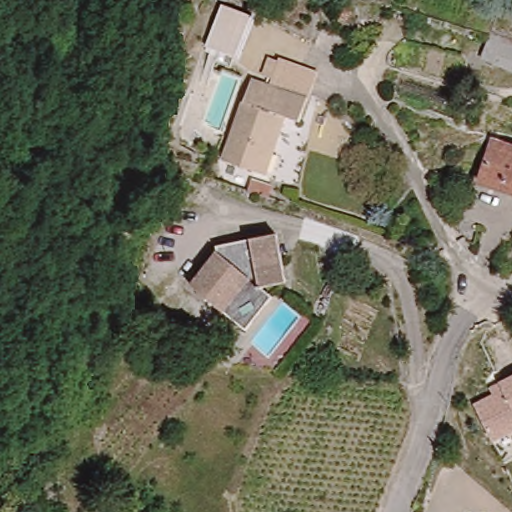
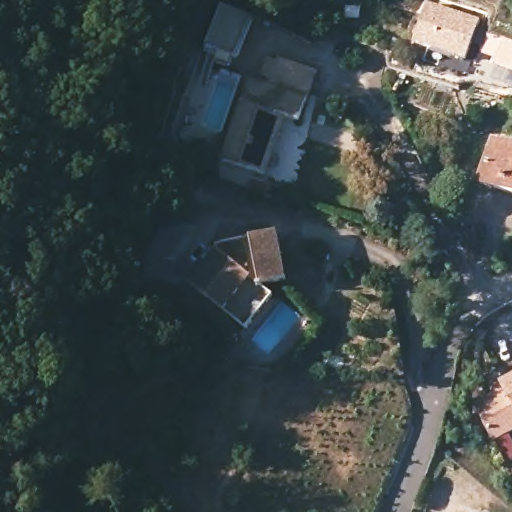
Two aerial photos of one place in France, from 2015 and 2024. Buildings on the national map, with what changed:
new [(414,43),(428,1),(479,19),(466,60),(414,43)]
unchanged [(221,6),(249,15),(238,58),(208,49),(221,6)]
demolished [(479,64),(488,39),(502,44),(493,69),(479,64)]
unchanged [(512,48),(512,75),(493,69),(502,44),(512,48)]
unchanged [(304,121),(284,114),(266,170),(223,154),(251,76),(259,79),(259,75),(253,72),(259,53),(266,56),(319,75),(304,121)]
unchanged [(512,194),(483,185),(494,143),(512,147),(512,194)]
unchanged [(284,282),(260,287),(273,297),(248,329),(193,285),(218,251),(216,244),(276,234),(284,282)]
unchanged [(100,317),(93,337),(78,330),(86,311),(100,317)]
unchanged [(474,403),(501,391),(498,383),(512,376),(512,433),(493,443),(474,403)]

